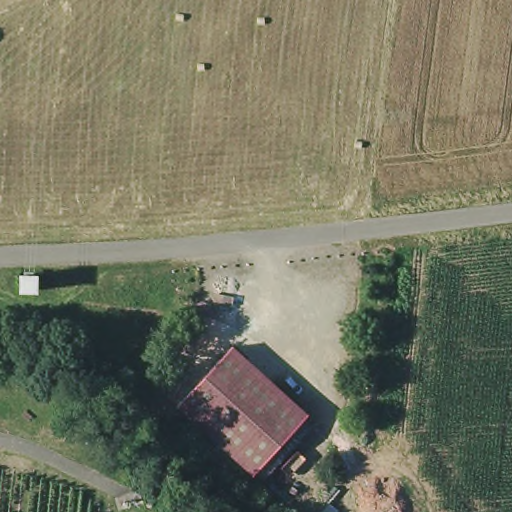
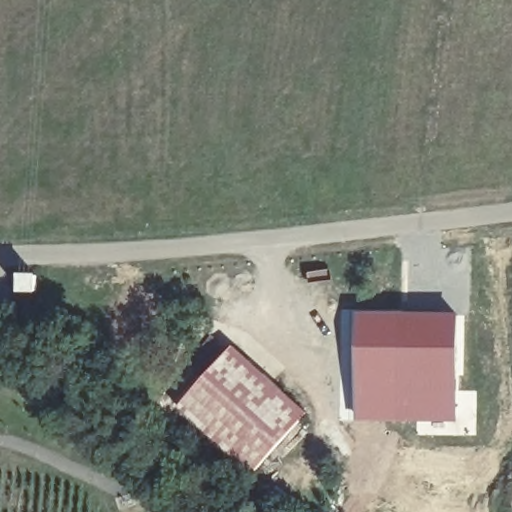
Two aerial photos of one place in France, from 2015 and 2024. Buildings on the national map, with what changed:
new [(355,310),(457,312),(458,423),(352,420),(352,374),(355,310)]
unchanged [(306,415),(252,476),(177,409),(231,348),(306,415)]

